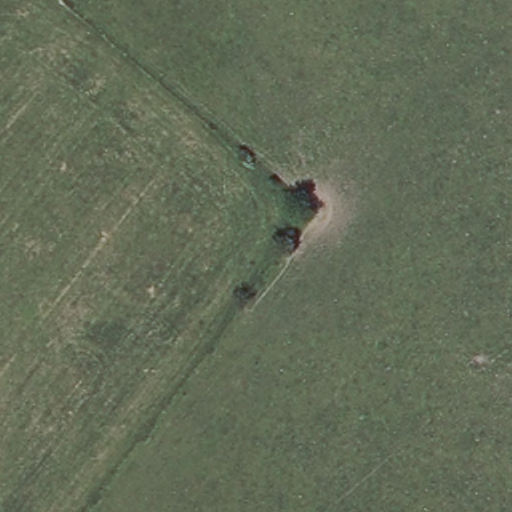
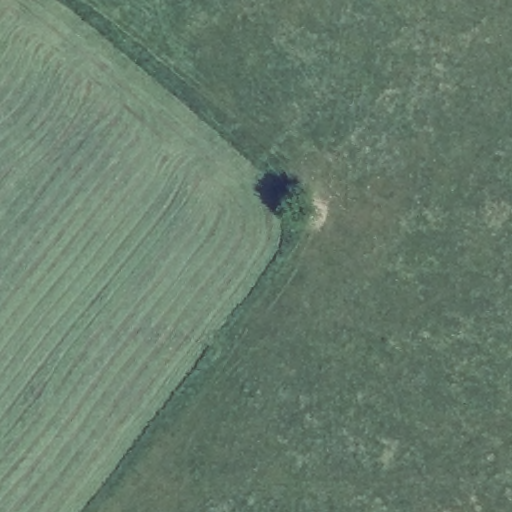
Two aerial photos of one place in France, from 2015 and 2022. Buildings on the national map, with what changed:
[]

